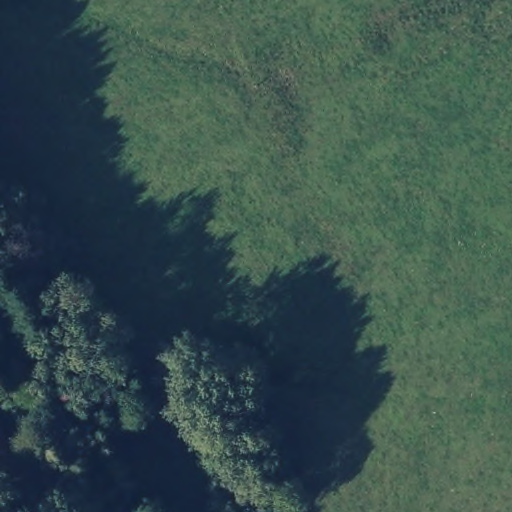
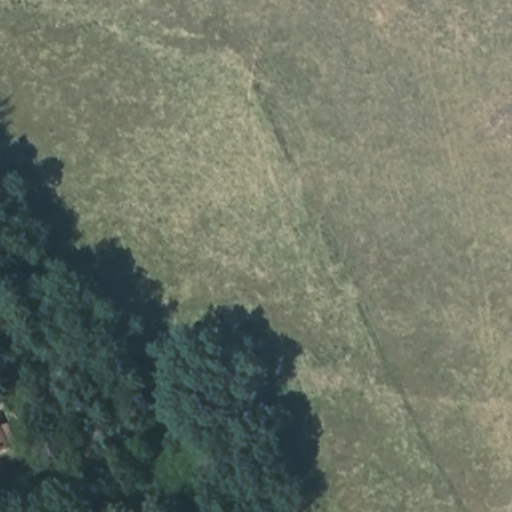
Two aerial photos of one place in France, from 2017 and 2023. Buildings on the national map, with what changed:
unchanged [(0,456),(0,434),(7,453),(0,456)]

